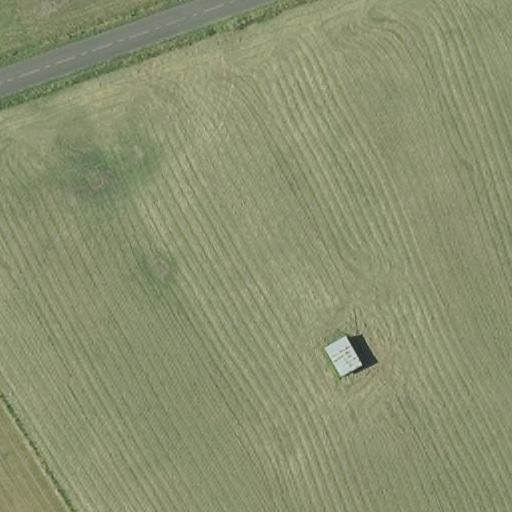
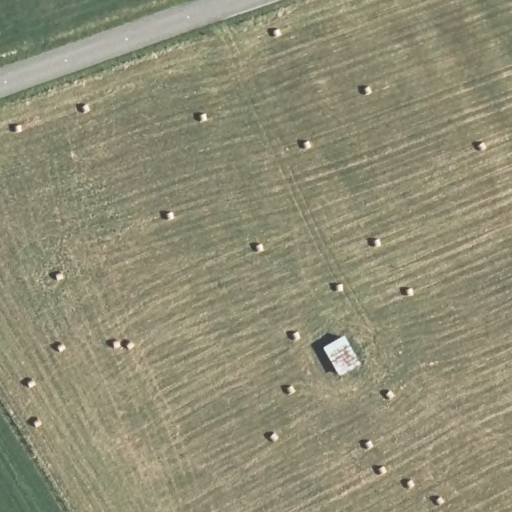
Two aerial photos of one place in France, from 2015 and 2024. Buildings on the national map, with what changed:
unchanged [(340,340),(357,370),(334,382),(317,351),(340,340)]

